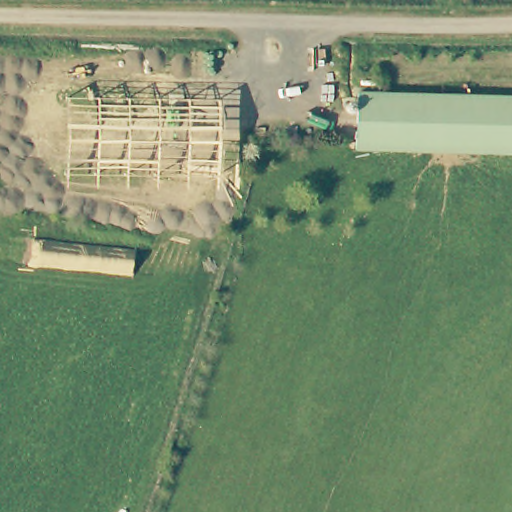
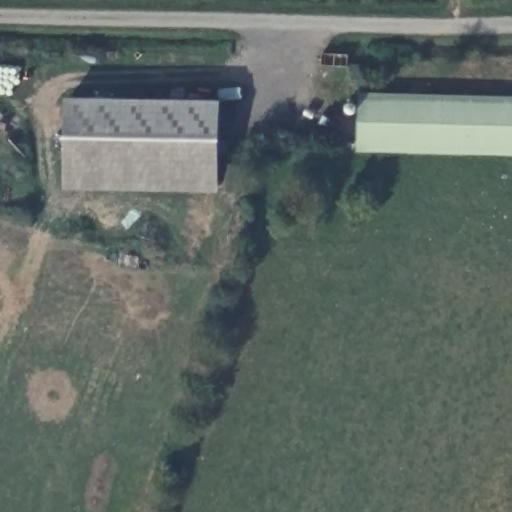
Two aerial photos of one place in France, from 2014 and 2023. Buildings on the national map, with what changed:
demolished [(0,90),(168,96),(168,140),(0,135),(0,90)]
new [(222,100),(221,192),(65,190),(65,97),(222,100)]
unchanged [(357,142),(358,99),(512,104),(512,148),(357,142)]

